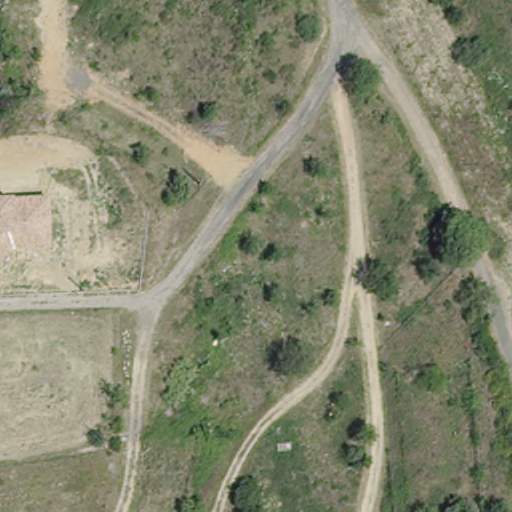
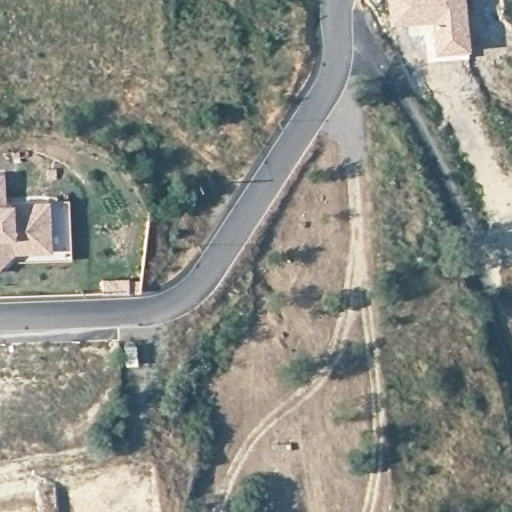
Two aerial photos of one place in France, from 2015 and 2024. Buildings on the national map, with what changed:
new [(470,50),(435,55),(430,21),(390,23),(387,0),(464,0),(470,50)]
new [(5,201),(0,201),(0,171),(3,170),(5,201)]
new [(13,251),(0,265),(0,201),(12,201),(48,200),(50,250),(13,251)]
demolished [(6,230),(9,252),(0,253),(0,230),(6,230)]

